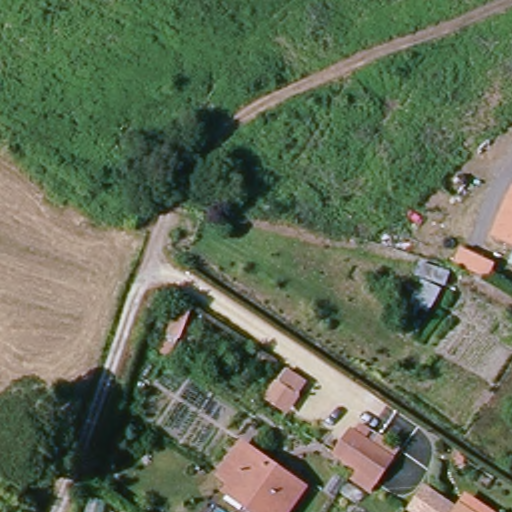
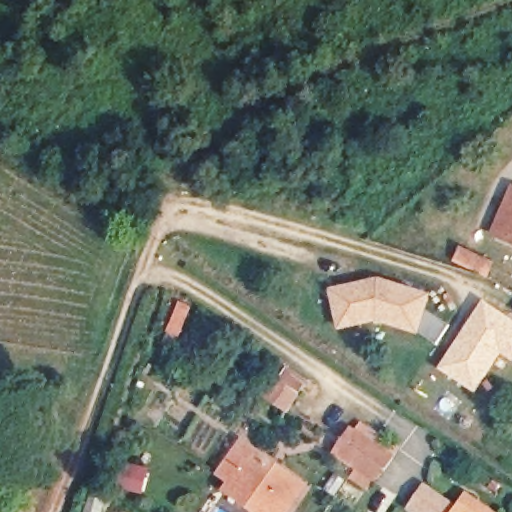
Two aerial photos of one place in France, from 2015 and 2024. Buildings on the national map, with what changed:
unchanged [(508,199),(511,192),(512,193),(512,247),(492,239),(508,199)]
new [(431,296),(418,337),(377,324),(338,332),(328,291),(378,279),(431,296)]
new [(512,359),(502,353),(476,392),(442,371),(484,307),(512,325),(512,359)]
unchanged [(304,384),(315,392),(303,408),(283,394),(294,377),(304,384)]
unchanged [(366,486),(349,475),(333,463),(350,438),(366,450),(383,461),(366,486)]
unchanged [(306,491),(292,512),(260,512),(225,488),(231,477),(219,470),(237,442),(306,491)]
unchanged [(463,512),(418,512),(415,510),(430,489),(463,512)]
unchanged [(466,507),(472,512),(463,512),(466,507)]

